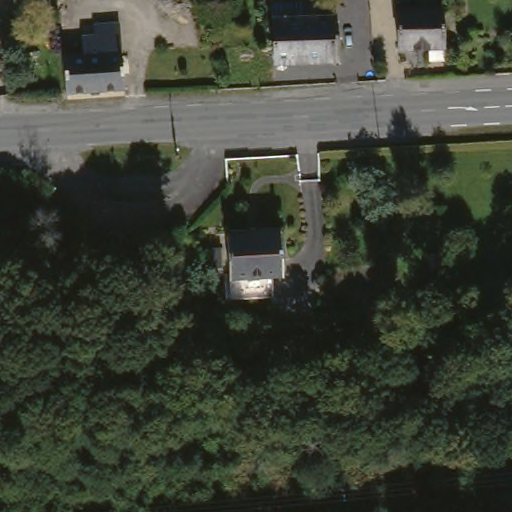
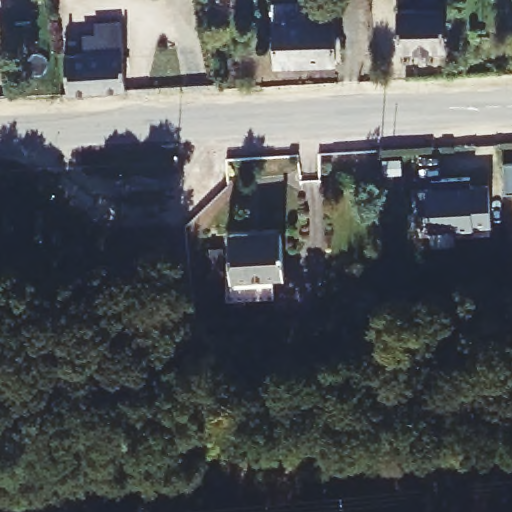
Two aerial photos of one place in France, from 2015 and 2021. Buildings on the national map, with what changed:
unchanged [(408,11),(425,11),(425,0),(444,0),(446,40),(411,42),(408,11)]
unchanged [(325,13),(329,67),(279,70),(273,17),(325,13)]
unchanged [(65,95),(63,57),(77,56),(77,60),(92,58),(92,44),(91,34),(114,33),(115,43),(120,93),(65,95)]
new [(512,193),(505,193),(503,163),(512,163),(512,193)]
new [(432,182),(431,178),(441,177),(470,174),(471,184),(489,182),(492,223),(474,224),(475,231),(456,233),(455,227),(430,228),(428,212),(418,212),(416,188),(432,187),(432,182)]
unchanged [(283,229),(287,266),(279,267),(281,288),(239,291),(237,270),(233,226),(253,225),(254,232),(283,229)]
unchanged [(165,232),(166,252),(127,252),(115,253),(114,233),(122,233),(165,232)]

